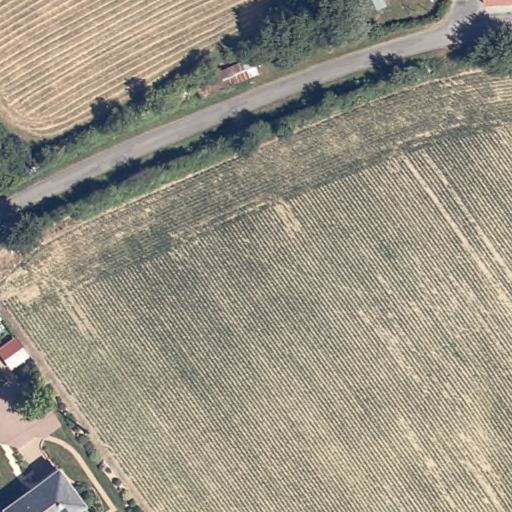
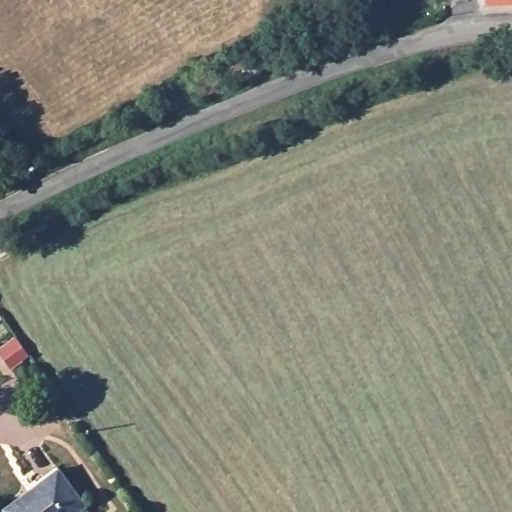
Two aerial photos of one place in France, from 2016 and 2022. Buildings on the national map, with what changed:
unchanged [(338,18),(336,5),(360,2),(364,36),(317,49),(315,24),(338,18)]
unchanged [(256,51),(264,72),(179,110),(171,91),(256,51)]
unchanged [(89,505),(80,512),(9,512),(7,509),(62,470),(89,505)]

